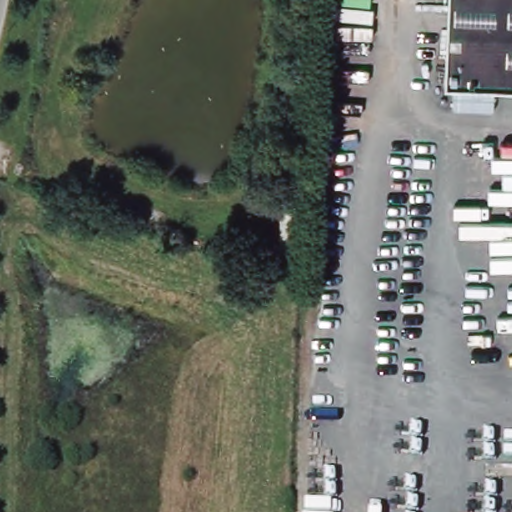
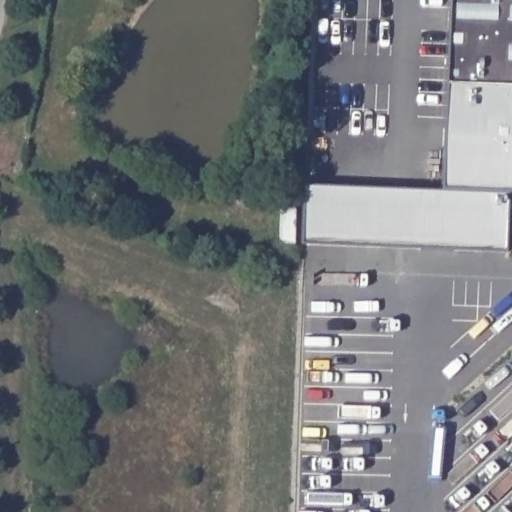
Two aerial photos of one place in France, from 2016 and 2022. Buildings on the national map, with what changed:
unchanged [(512,85),(446,83),(449,0),(512,0),(512,85)]
new [(512,189),(507,189),(504,252),(302,243),(304,186),(442,192),(446,83),(512,85),(512,189)]

